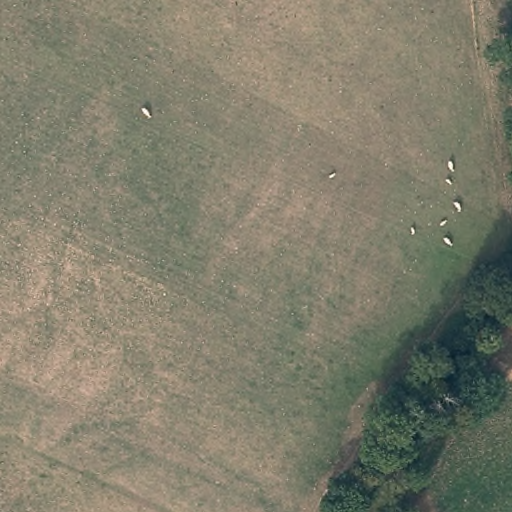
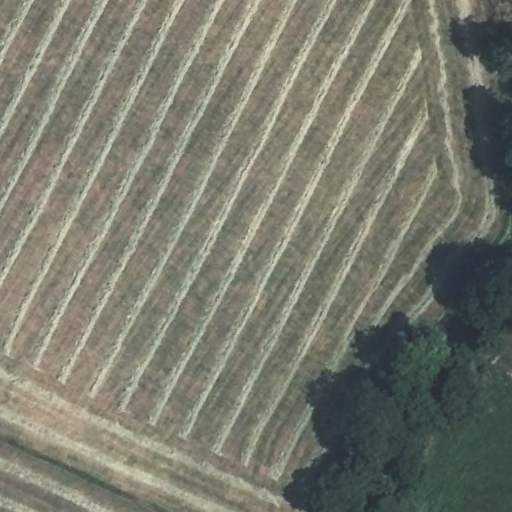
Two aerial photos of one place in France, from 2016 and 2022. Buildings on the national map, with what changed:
[]

